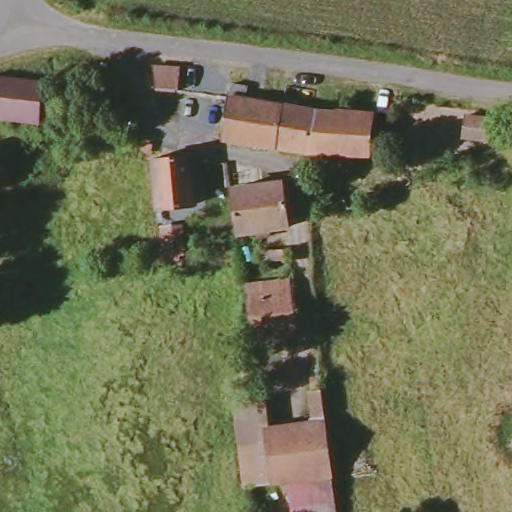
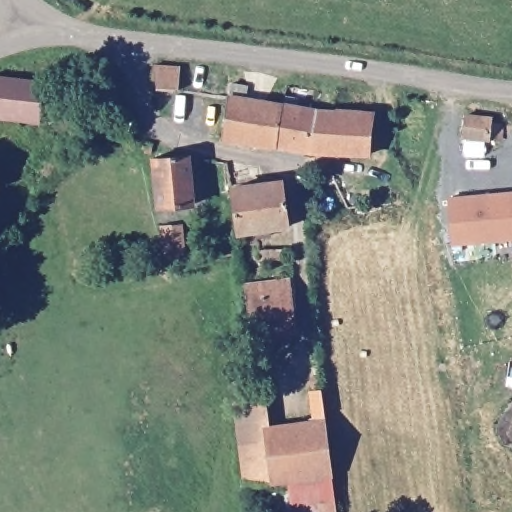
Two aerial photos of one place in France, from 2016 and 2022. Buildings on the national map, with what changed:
unchanged [(150,62),(186,67),(175,86),(153,92),(150,62)]
unchanged [(43,82),(38,121),(0,116),(0,76),(43,82)]
unchanged [(222,99),(275,106),(270,150),(217,142),(222,99)]
unchanged [(370,115),(366,160),(297,153),(270,150),(275,106),(370,115)]
unchanged [(492,117),(490,140),(463,137),(466,114),(492,117)]
unchanged [(185,203),(150,206),(147,157),(182,155),(185,203)]
unchanged [(227,187),(280,180),(286,225),(233,233),(227,187)]
new [(512,241),(450,247),(447,201),(512,194),(512,241)]
unchanged [(173,221),(174,242),(170,242),(167,248),(165,251),(164,253),(162,253),(160,253),(158,250),(157,247),(157,245),(156,243),(155,243),(154,221),(173,221)]
unchanged [(290,329),(247,336),(240,288),(283,281),(290,329)]
unchanged [(263,426),(308,421),(305,392),(317,391),(327,475),(332,512),(288,512),(284,480),(241,485),(230,402),(260,398),(263,426)]

